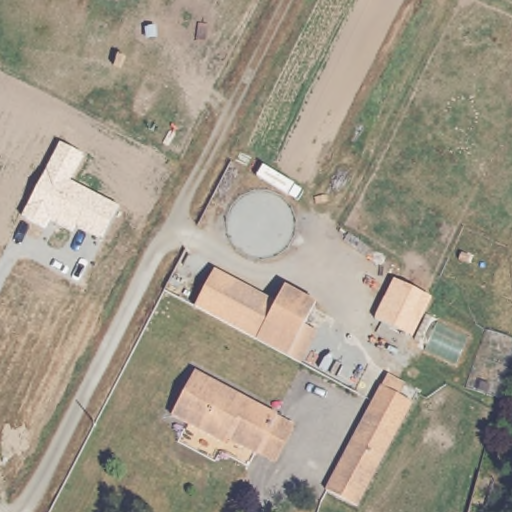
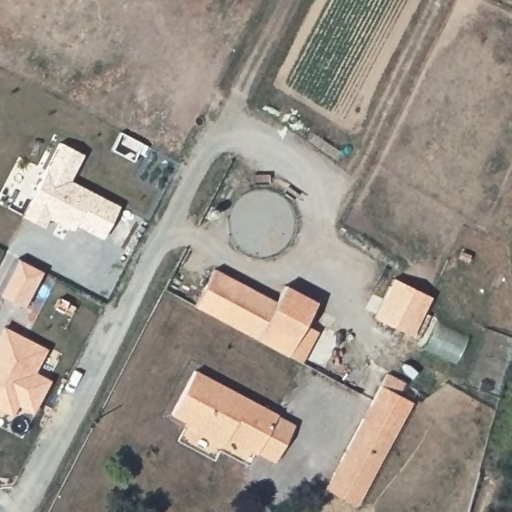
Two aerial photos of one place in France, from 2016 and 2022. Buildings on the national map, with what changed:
unchanged [(120,204),(104,239),(78,223),(75,227),(51,216),(45,226),(23,215),(59,142),(86,153),(74,180),(120,204)]
new [(0,295),(0,294),(18,259),(43,272),(25,308),(0,295)]
unchanged [(291,359),(197,310),(216,273),(279,306),(287,289),(319,305),(306,330),(318,336),(303,365),(291,359)]
unchanged [(433,296),(414,337),(373,318),(391,284),(393,278),(433,296)]
new [(51,379),(34,414),(17,404),(12,415),(0,409),(0,332),(3,326),(48,348),(36,372),(51,379)]
unchanged [(279,456),(261,447),(230,433),(228,435),(175,408),(198,365),(280,408),(298,418),(279,456)]
unchanged [(398,393),(416,401),(361,503),(329,488),(390,374),(404,381),(398,393)]

